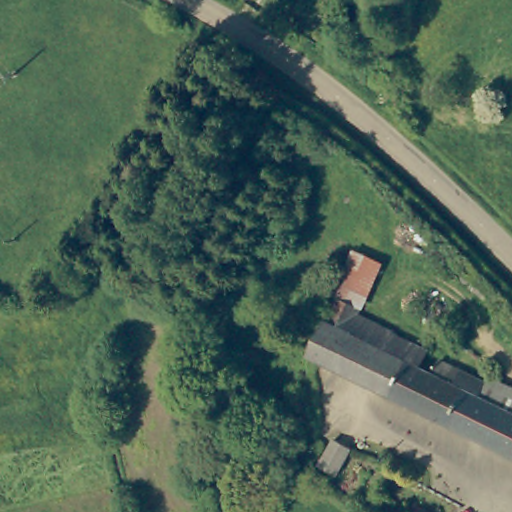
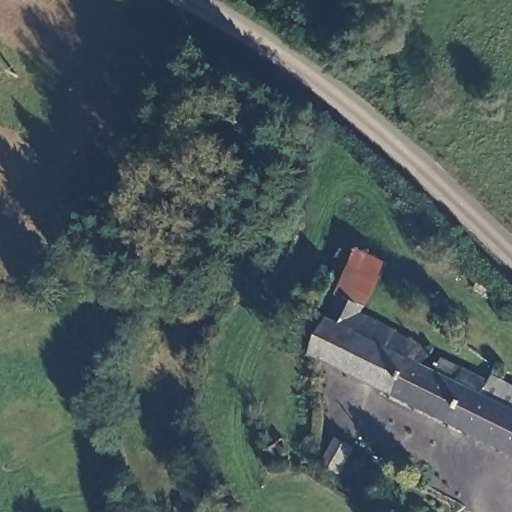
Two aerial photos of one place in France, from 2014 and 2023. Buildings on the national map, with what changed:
unchanged [(336,291),(357,249),(382,260),(361,303),(340,293),(336,291)]
unchanged [(361,303),(363,304),(361,308),(430,345),(421,360),(329,316),(329,315),(340,293),(361,303)]
unchanged [(327,315),(329,315),(329,316),(421,360),(435,367),(442,355),(485,376),(488,370),(512,382),(512,451),(309,350),(327,315)]
unchanged [(336,440),(354,448),(340,475),(323,466),(336,440)]

